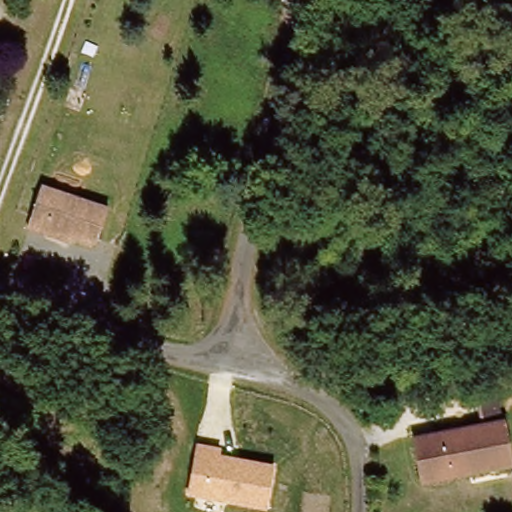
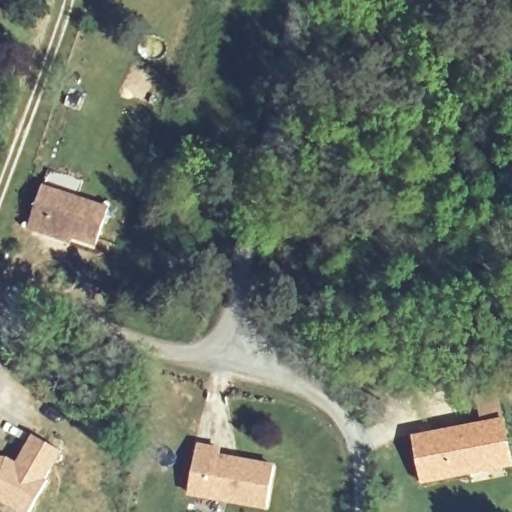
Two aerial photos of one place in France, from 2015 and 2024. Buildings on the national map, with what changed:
unchanged [(48,227),(46,230),(30,225),(43,187),(109,204),(100,240),(48,227)]
unchanged [(412,434),(503,424),(508,467),(417,477),(412,434)]
new [(0,455),(8,455),(17,461),(33,434),(63,452),(30,512),(22,512),(0,500),(0,455)]
unchanged [(222,447),(221,455),(275,464),(268,508),(188,495),(198,442),(222,447)]

